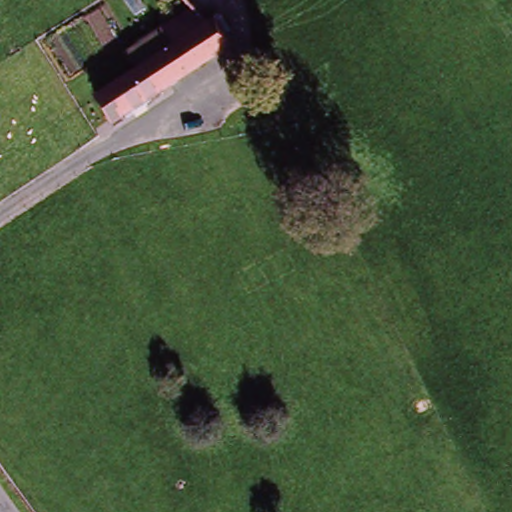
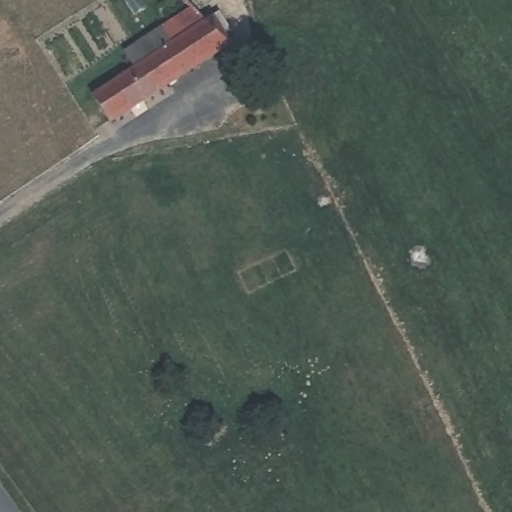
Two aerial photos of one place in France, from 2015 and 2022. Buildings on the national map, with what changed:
unchanged [(117,125),(100,101),(138,74),(125,56),(145,41),(191,8),(203,24),(218,13),(222,19),(232,35),(217,45),(223,54),(117,125)]

